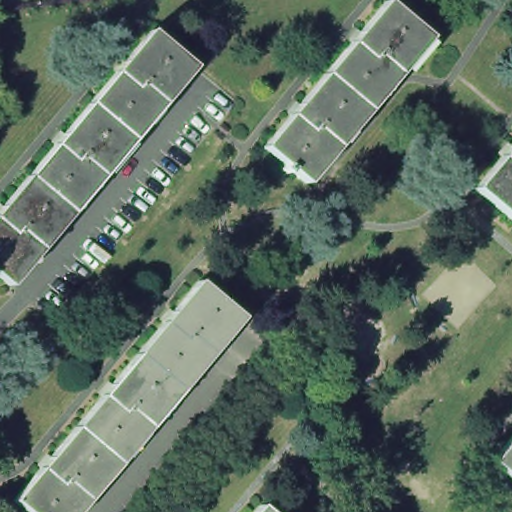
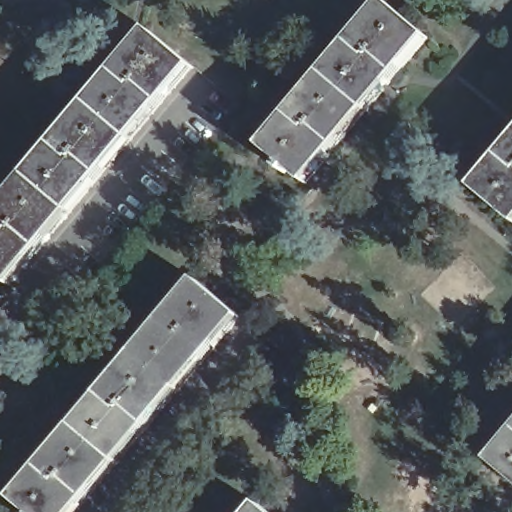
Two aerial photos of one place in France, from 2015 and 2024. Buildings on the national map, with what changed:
unchanged [(383,2),(427,38),(306,183),(264,147),(383,2)]
unchanged [(196,66),(15,284),(0,271),(0,215),(153,31),(196,66)]
unchanged [(512,218),(479,190),(512,149),(512,218)]
unchanged [(199,287),(242,322),(82,512),(29,512),(17,502),(199,287)]
unchanged [(512,431),(512,474),(491,457),(512,431)]
unchanged [(272,512),(255,512),(262,503),(272,512)]

